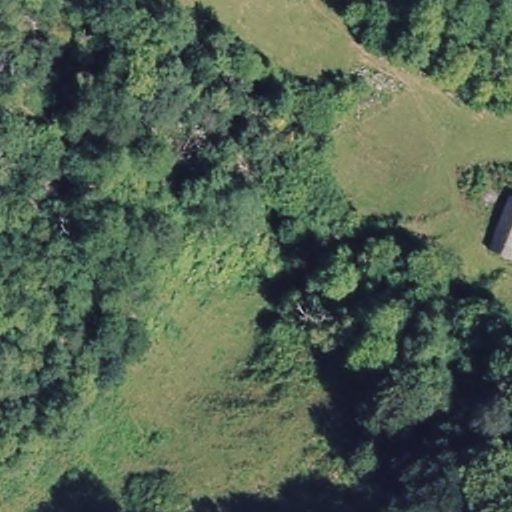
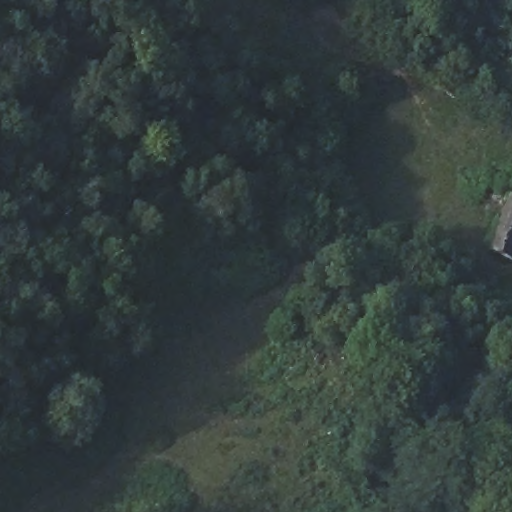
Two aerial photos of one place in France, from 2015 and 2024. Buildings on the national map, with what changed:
unchanged [(509,195),(512,196),(512,258),(511,260),(486,245),(509,195)]

